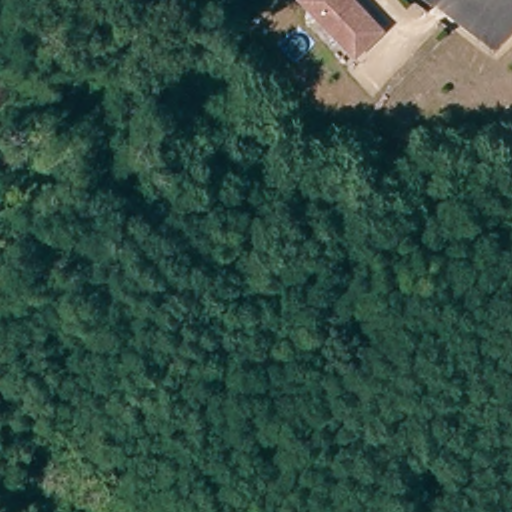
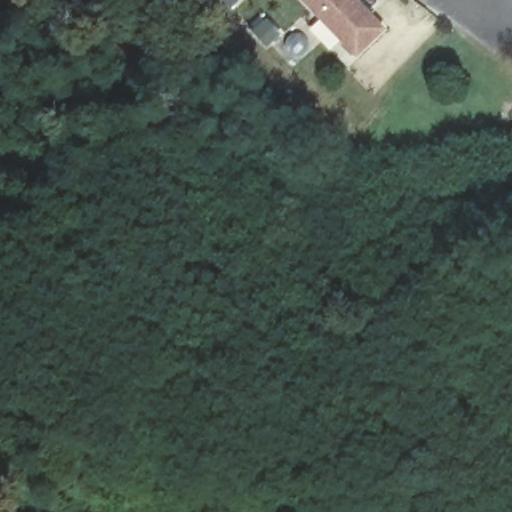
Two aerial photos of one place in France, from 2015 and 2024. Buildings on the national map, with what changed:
unchanged [(363,0),(391,30),(364,55),(312,0),(363,0)]

